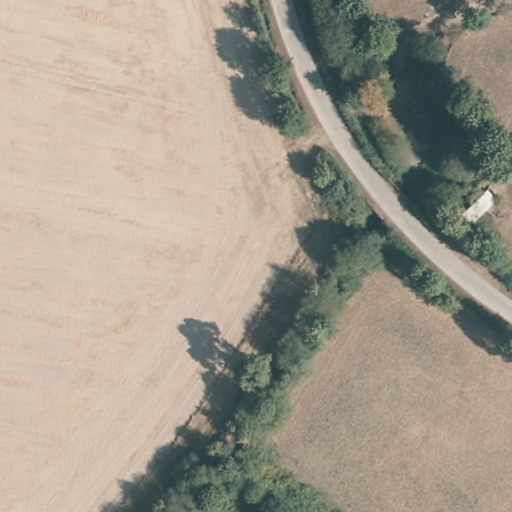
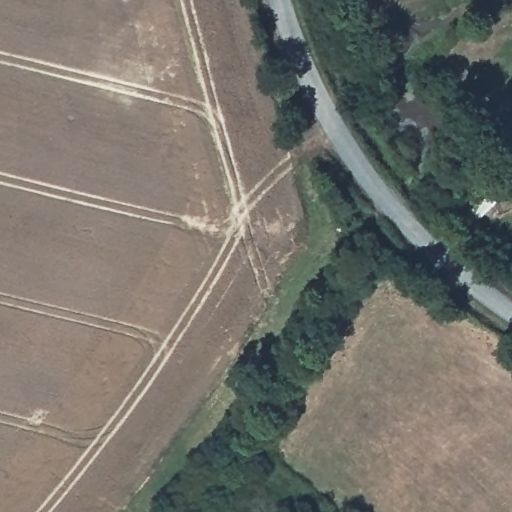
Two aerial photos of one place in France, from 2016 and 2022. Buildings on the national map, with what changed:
[]

